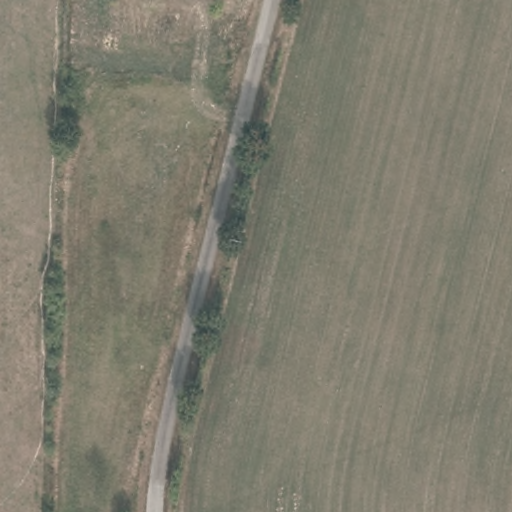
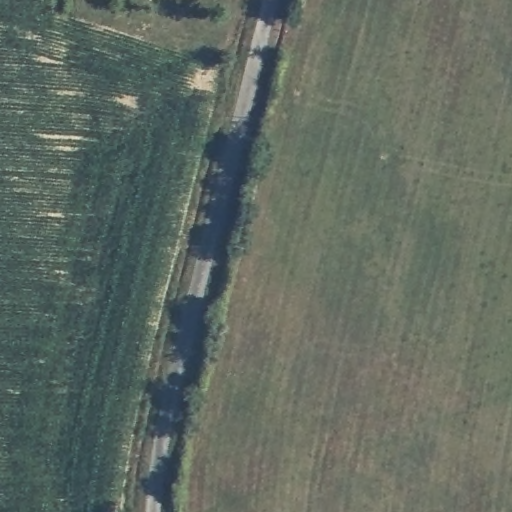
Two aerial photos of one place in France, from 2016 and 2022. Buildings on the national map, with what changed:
[]

